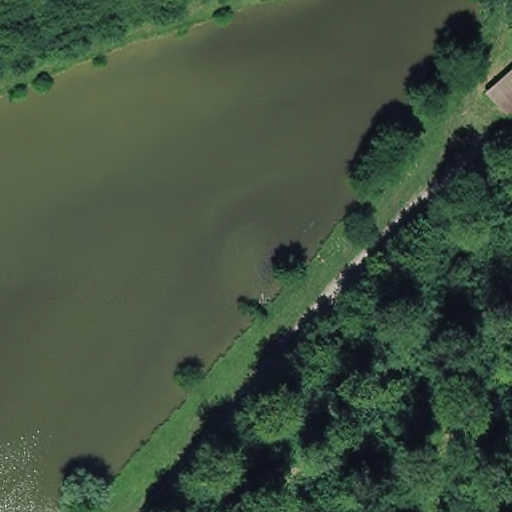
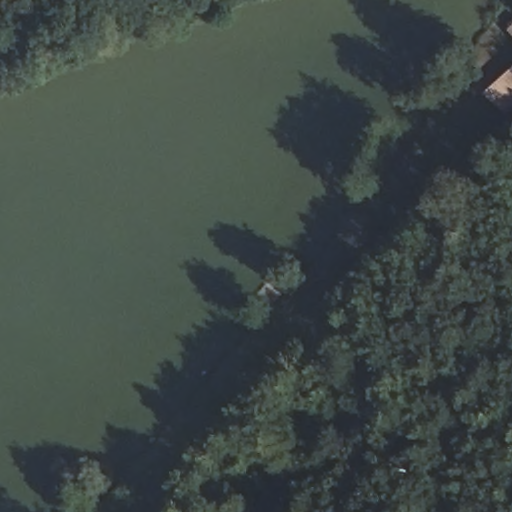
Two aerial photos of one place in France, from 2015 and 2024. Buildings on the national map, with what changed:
unchanged [(512,28),(512,37),(507,32),(512,28)]
unchanged [(512,116),(510,118),(484,94),(512,70),(512,116)]

